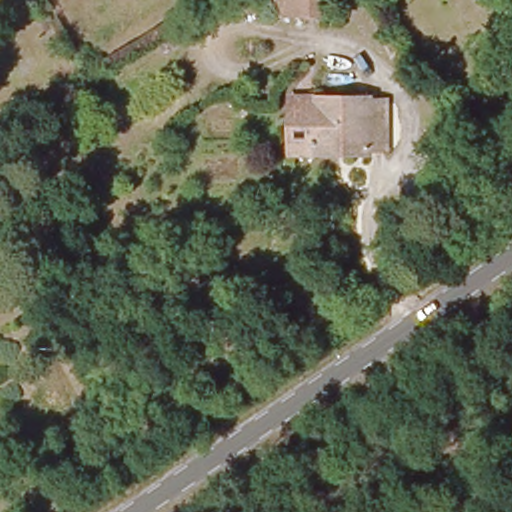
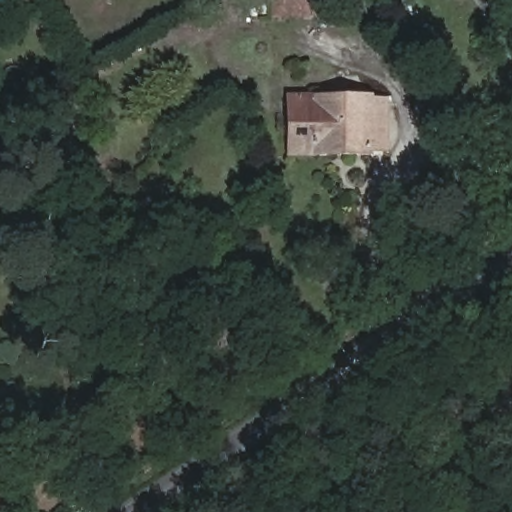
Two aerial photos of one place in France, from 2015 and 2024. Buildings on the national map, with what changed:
unchanged [(327,0),(327,16),(309,15),(298,15),(291,15),(283,14),(279,14),(263,13),(263,0),(327,0)]
unchanged [(294,97),(369,100),(383,101),(381,151),(369,151),(318,151),(293,150),(293,138),(294,97)]

